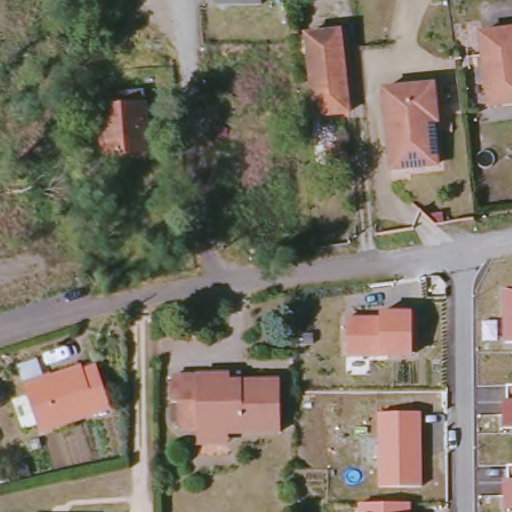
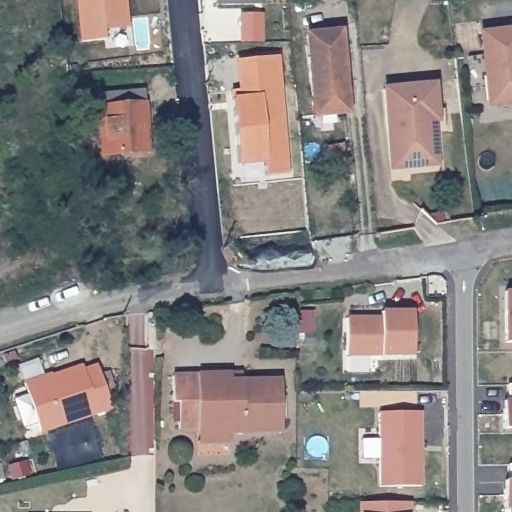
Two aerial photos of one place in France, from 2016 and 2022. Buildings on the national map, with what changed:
new [(77,0),(128,0),(132,30),(107,35),(108,42),(81,45),(77,0)]
unchanged [(512,29),(512,104),(487,106),(483,71),(485,71),(480,32),(512,29)]
unchanged [(339,34),(344,115),(317,117),(316,99),(310,100),(305,36),(339,34)]
new [(277,56),(289,172),(267,175),(266,160),(239,163),(234,110),(239,110),(237,99),(232,100),(232,91),(240,90),(237,60),(277,56)]
unchanged [(437,85),(440,126),(435,128),(438,168),(390,174),(381,91),(437,85)]
unchanged [(149,91),(151,155),(109,156),(107,94),(149,91)]
unchanged [(512,291),(512,342),(503,342),(502,291),(512,291)]
unchanged [(412,358),(382,358),(345,358),(346,320),(382,318),(382,313),(412,313),(412,358)]
unchanged [(52,380),(50,375),(82,365),(84,368),(99,363),(114,405),(44,430),(29,387),(52,380)]
unchanged [(195,445),(196,432),(182,432),(182,407),(177,406),(177,380),(232,380),(232,387),(285,390),(285,433),(230,433),(229,445),(195,445)]
unchanged [(505,430),(505,400),(508,400),(507,385),(512,385),(512,430),(505,430)]
unchanged [(420,415),(420,487),(379,487),(377,414),(420,415)]
unchanged [(505,510),(505,481),(508,481),(507,466),(512,466),(512,511),(505,510)]
unchanged [(412,505),(412,512),(360,512),(360,502),(412,505)]

